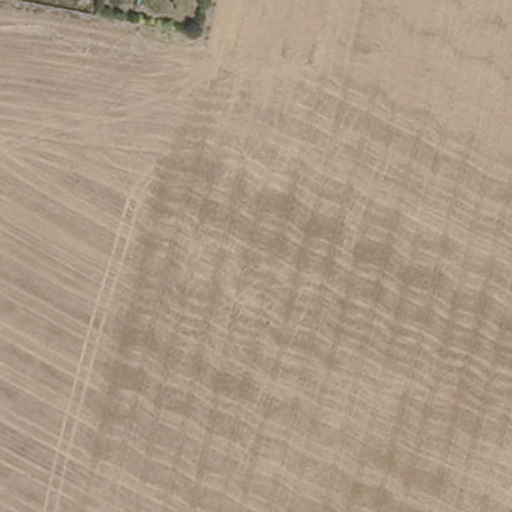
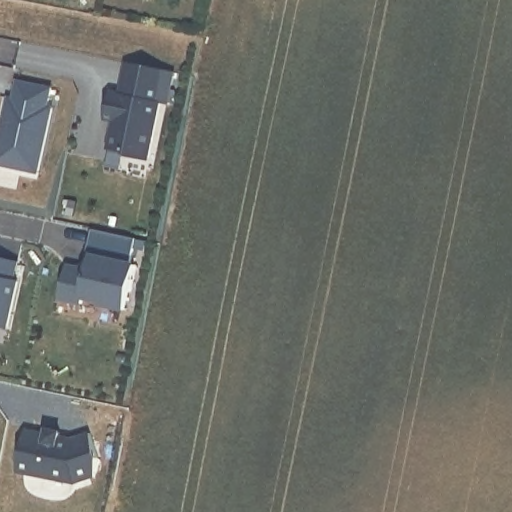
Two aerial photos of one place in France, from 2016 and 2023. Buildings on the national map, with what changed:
new [(148,166),(129,162),(126,159),(110,155),(116,126),(106,125),(112,97),(121,100),(128,68),(175,77),(167,110),(161,109),(148,166)]
new [(51,87),(47,106),(54,107),(40,175),(0,167),(0,131),(7,97),(12,97),(16,79),(51,87)]
new [(120,307),(101,303),(101,300),(83,296),(81,302),(60,298),(68,265),(96,271),(99,257),(87,255),(93,229),(134,237),(129,263),(134,264),(128,290),(124,308),(120,307)]
new [(8,326),(0,324),(0,255),(18,259),(14,277),(19,278),(8,326)]
new [(96,271),(89,270),(92,256),(99,257),(96,271)]
new [(46,433),(47,429),(62,432),(61,436),(73,438),(89,434),(95,478),(74,484),(17,472),(24,429),(46,433)]

